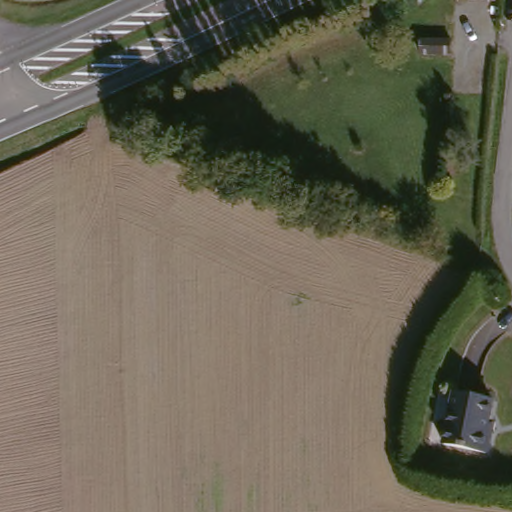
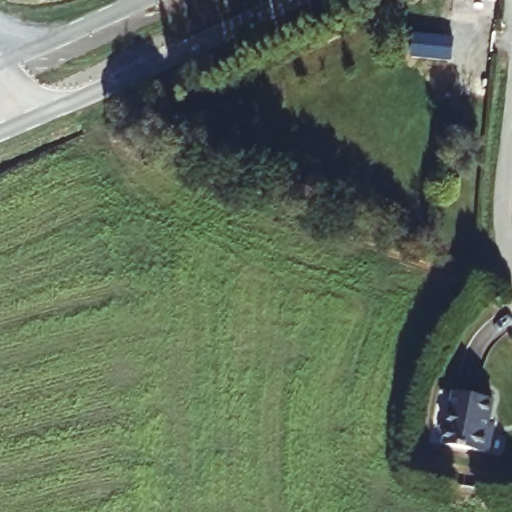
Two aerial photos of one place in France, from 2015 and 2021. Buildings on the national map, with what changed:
unchanged [(427,57),(427,41),(455,41),(455,56),(427,57)]
unchanged [(495,400),(489,430),(496,431),(492,452),(446,443),(455,392),(495,400)]

